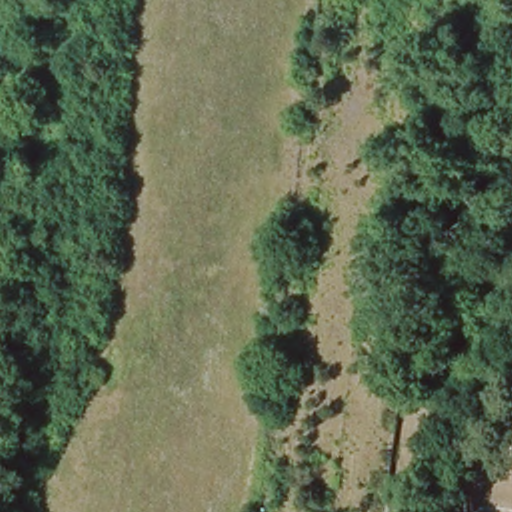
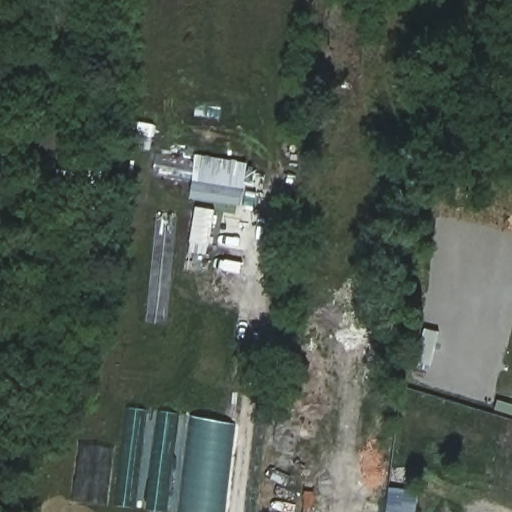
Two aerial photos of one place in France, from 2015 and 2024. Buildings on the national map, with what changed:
new [(247,162),(241,205),(188,198),(195,154),(247,162)]
new [(99,188),(60,190),(59,171),(98,169),(99,188)]
new [(196,206),(218,210),(212,246),(189,242),(196,206)]
new [(192,418),(232,424),(224,512),(181,512),(192,418)]

